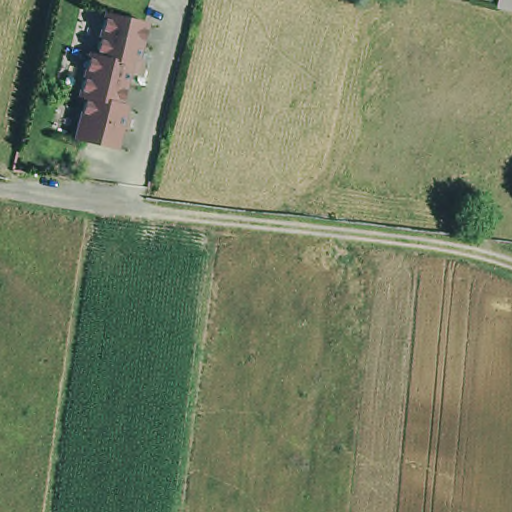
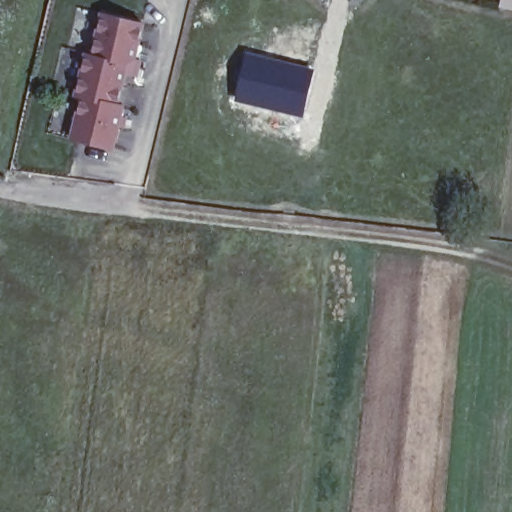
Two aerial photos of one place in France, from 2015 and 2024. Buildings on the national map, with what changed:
unchanged [(502,8),(505,0),(512,0),(512,11),(502,8)]
unchanged [(138,52),(145,54),(140,69),(128,67),(121,97),(127,99),(116,143),(76,133),(87,91),(81,90),(91,47),(97,48),(107,7),(147,16),(138,52)]
new [(244,50),(315,68),(302,117),(232,100),(244,50)]

